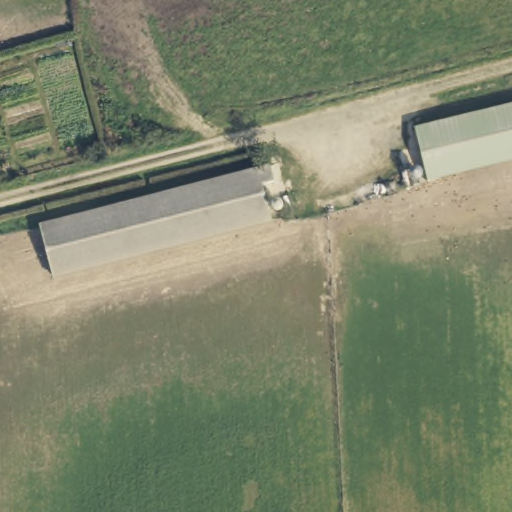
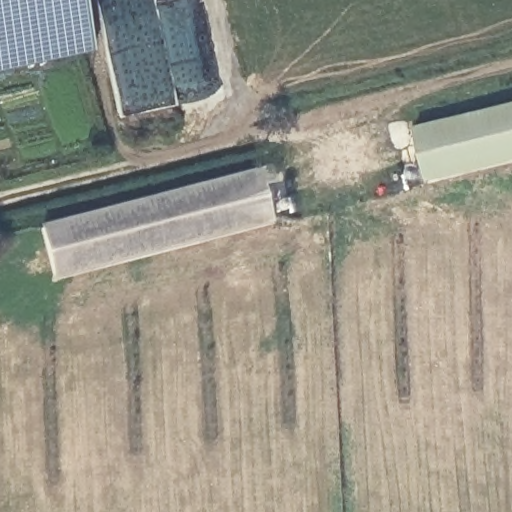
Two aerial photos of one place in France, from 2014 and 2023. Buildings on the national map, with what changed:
new [(94,50),(0,71),(0,0),(84,0),(94,50)]
unchanged [(415,130),(428,127),(429,131),(512,110),(512,157),(438,175),(439,180),(427,182),(423,164),(420,145),(418,146),(415,130)]
unchanged [(136,205),(257,175),(261,170),(271,167),(273,182),(262,185),(270,219),(155,249),(55,275),(42,230),(136,205)]

